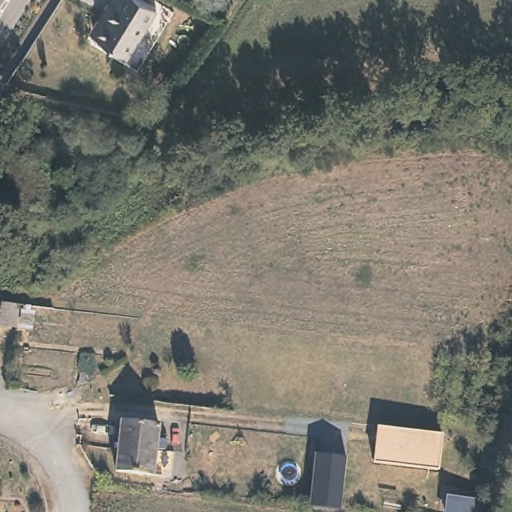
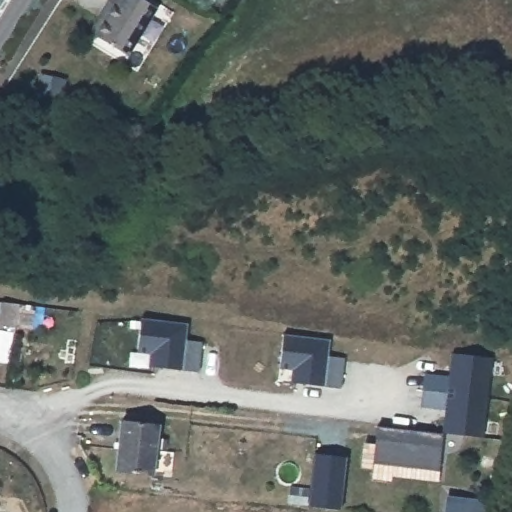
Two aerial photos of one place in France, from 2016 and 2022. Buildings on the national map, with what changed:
unchanged [(127,55),(95,34),(90,31),(110,0),(145,0),(156,7),(127,55)]
unchanged [(16,326),(1,323),(1,317),(0,317),(0,301),(19,304),(16,326)]
new [(148,366),(149,353),(138,352),(141,317),(186,322),(184,340),(201,341),(198,372),(182,370),(148,366)]
new [(327,356),(344,358),(340,388),(324,386),(290,382),(292,369),(279,367),(283,335),(329,339),(327,356)]
new [(492,357),(483,437),(444,432),(446,409),(419,406),(424,372),(449,376),(453,352),(492,357)]
unchanged [(138,425),(159,427),(153,473),(114,468),(120,422),(138,425)]
unchanged [(441,470),(374,462),(379,428),(442,435),(441,470)]
unchanged [(341,510),(305,506),(314,455),(347,458),(341,510)]

